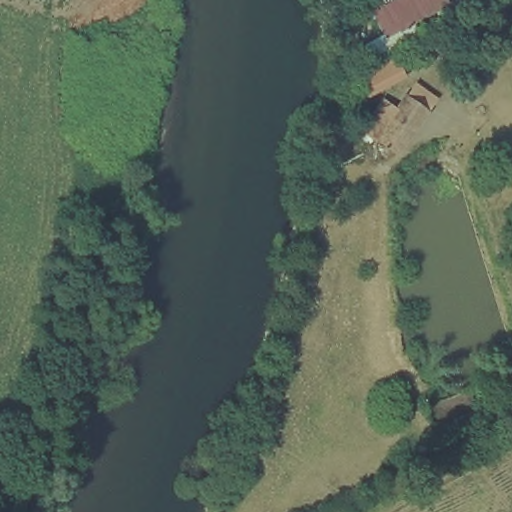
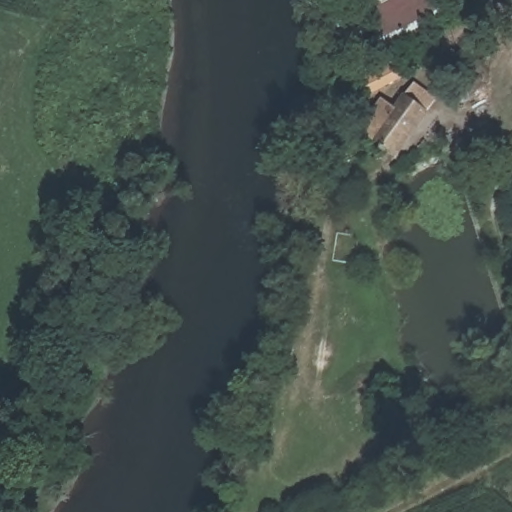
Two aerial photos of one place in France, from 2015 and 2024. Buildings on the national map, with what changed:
unchanged [(372,12),(396,0),(435,0),(440,12),(386,46),(379,31),(372,12)]
unchanged [(412,85),(372,104),(359,80),(402,59),(412,85)]
unchanged [(402,161),(379,149),(381,145),(365,137),(386,101),(402,109),(416,87),(441,101),(402,161)]

